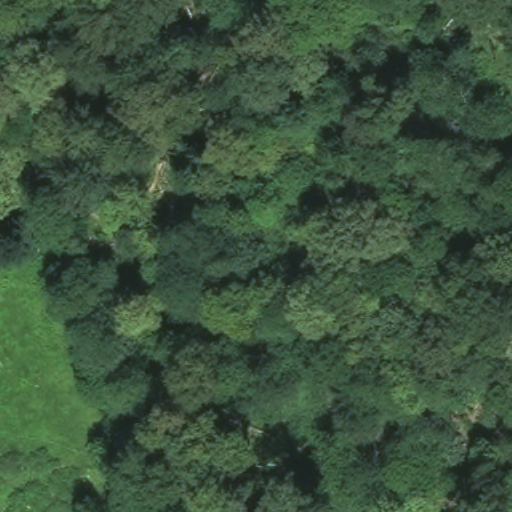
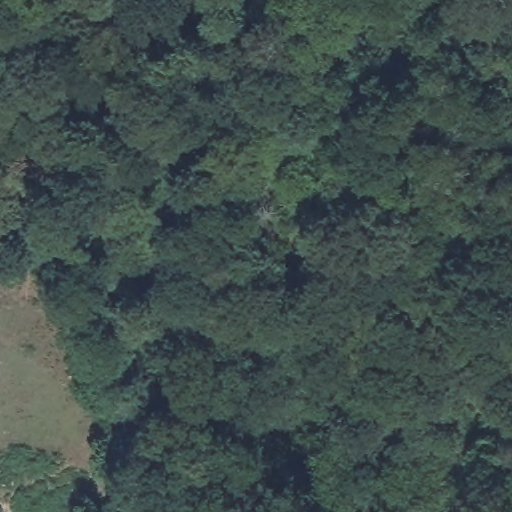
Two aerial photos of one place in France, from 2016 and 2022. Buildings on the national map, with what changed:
[]

